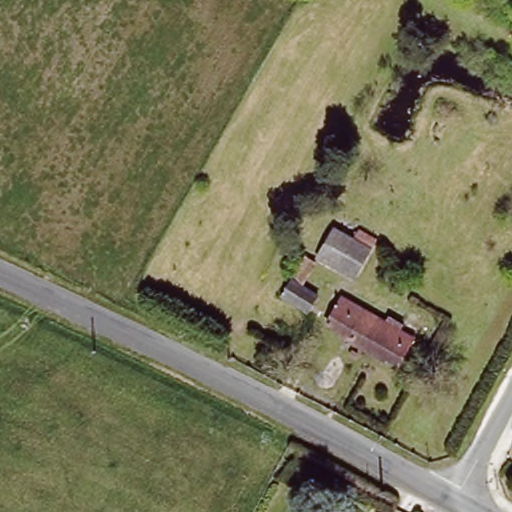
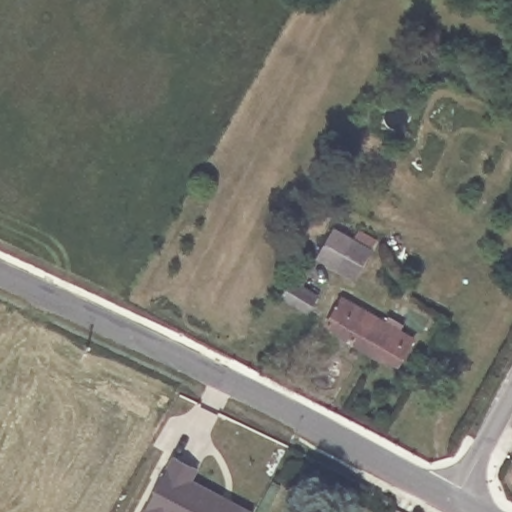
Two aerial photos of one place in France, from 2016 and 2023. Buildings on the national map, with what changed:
unchanged [(348,245),(355,233),(374,243),(352,282),(312,260),(327,235),(348,245)]
unchanged [(330,290),(321,307),(292,293),(302,275),(330,290)]
unchanged [(412,337),(397,364),(372,350),(372,352),(327,326),(337,309),(342,299),(387,323),(390,318),(406,326),(412,337)]
new [(145,512),(173,456),(201,469),(195,480),(255,511),(254,512),(145,512)]

